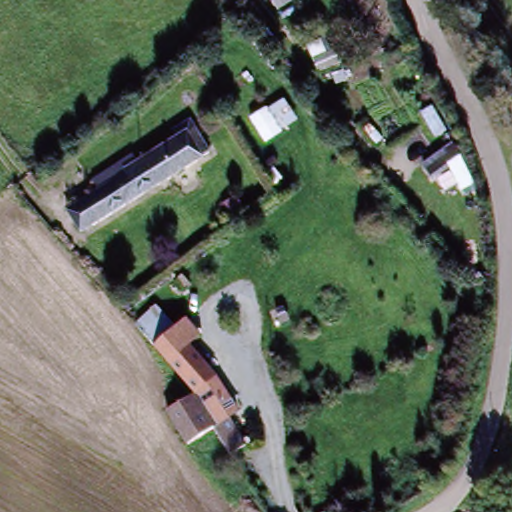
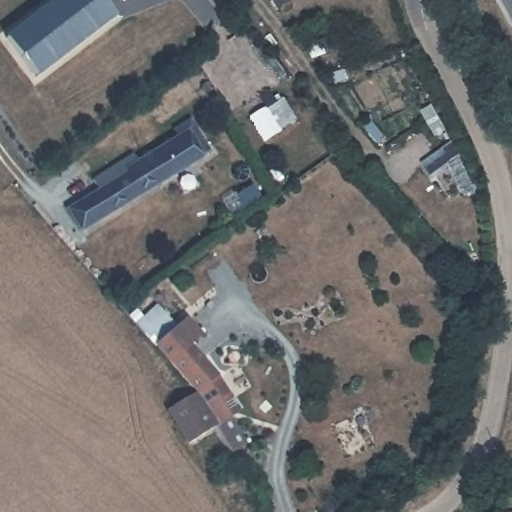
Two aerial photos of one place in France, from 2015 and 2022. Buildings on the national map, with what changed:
new [(3,41),(59,0),(97,0),(114,22),(34,81),(3,41)]
unchanged [(343,62),(319,72),(307,45),(326,36),(332,50),(337,48),(343,62)]
unchanged [(282,137),(265,147),(250,124),(268,113),(282,137)]
unchanged [(98,188),(91,179),(134,154),(138,159),(184,132),(195,125),(199,132),(211,152),(81,231),(68,207),(98,188)]
unchanged [(174,333),(175,333),(176,334),(187,325),(200,340),(190,349),(216,378),(195,395),(155,350),(138,329),(156,312),(164,320),(174,333)]
unchanged [(246,448),(232,456),(218,430),(194,443),(186,448),(166,415),(198,397),(212,420),(215,427),(230,419),(246,448)]

